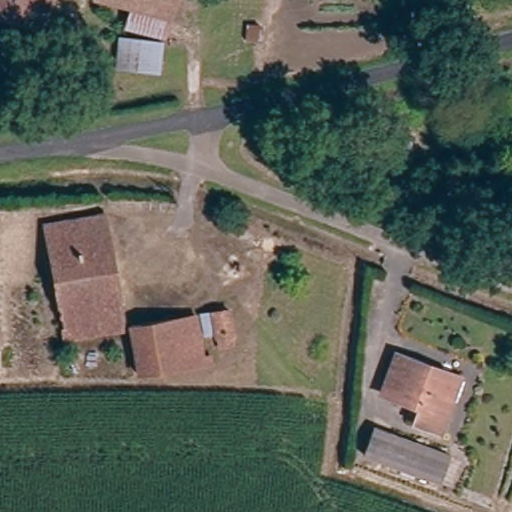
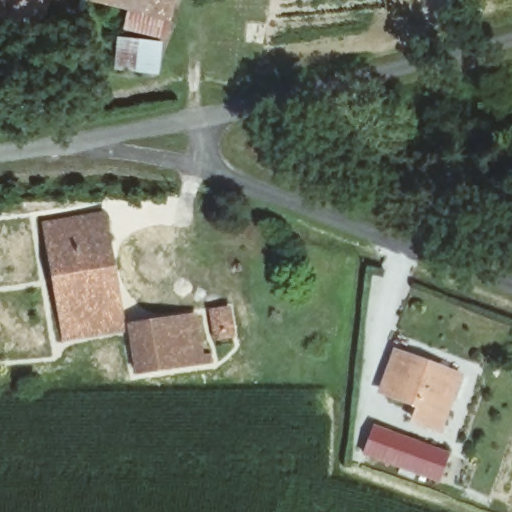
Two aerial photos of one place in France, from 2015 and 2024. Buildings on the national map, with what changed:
unchanged [(0,16),(0,0),(49,0),(39,29),(0,16)]
unchanged [(113,36),(122,36),(128,9),(93,0),(177,0),(162,43),(160,74),(111,66),(113,36)]
unchanged [(120,329),(61,338),(43,224),(104,214),(120,329)]
unchanged [(228,337),(227,347),(220,349),(213,339),(208,313),(224,309),(228,337)]
unchanged [(191,317),(200,365),(141,375),(132,327),(191,317)]
unchanged [(412,418),(415,405),(379,391),(394,353),(424,363),(456,377),(449,399),(439,428),(412,418)]
unchanged [(448,456),(438,481),(362,453),(372,426),(448,456)]

